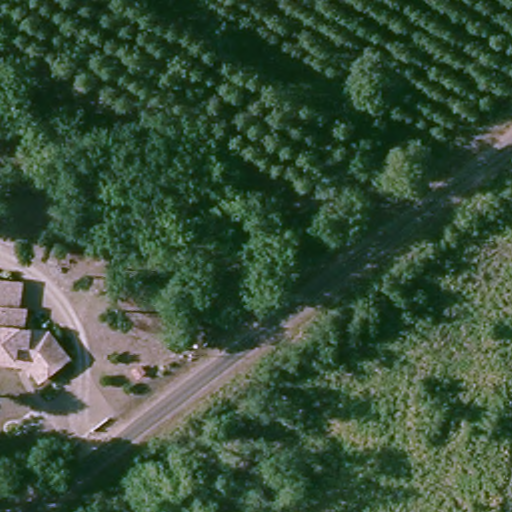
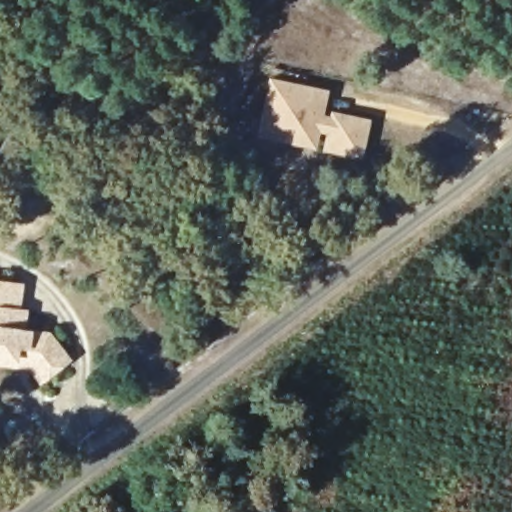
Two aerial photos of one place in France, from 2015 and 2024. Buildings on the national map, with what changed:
new [(329,89),(325,114),(330,116),(332,111),(371,119),(362,159),(322,150),(326,134),(318,132),(315,149),(257,136),(269,77),(329,89)]
unchanged [(37,359),(0,354),(0,280),(32,285),(29,312),(20,310),(17,329),(61,334),(80,359),(53,380),(42,367),(37,359)]
unchanged [(42,367),(0,361),(0,354),(37,359),(42,367)]

